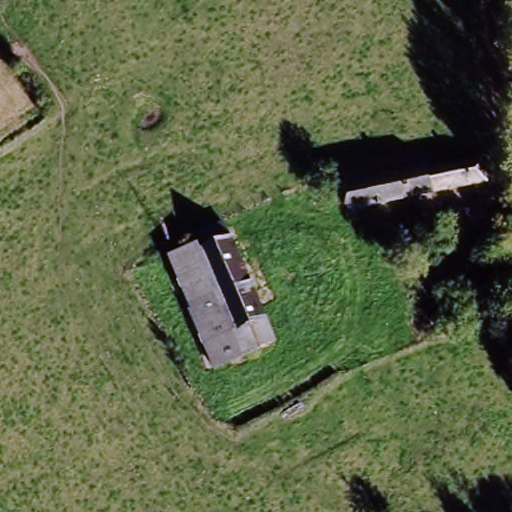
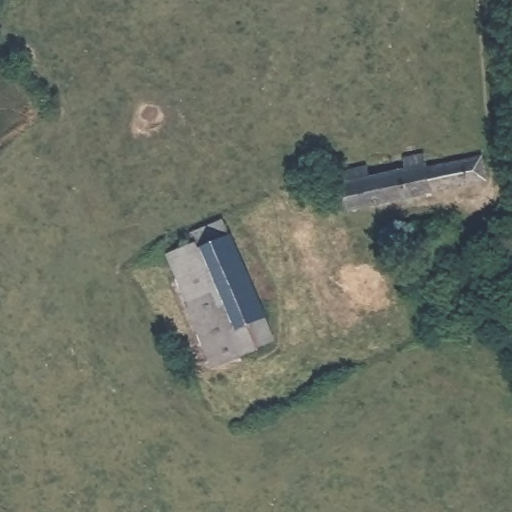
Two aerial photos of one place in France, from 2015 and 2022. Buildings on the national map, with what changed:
unchanged [(341,197),(343,157),(367,157),(368,169),(407,170),(408,156),(431,155),(431,169),(459,169),(481,169),(481,200),(458,200),(341,197)]
unchanged [(202,250),(235,347),(203,357),(183,301),(188,299),(170,249),(198,240),(194,232),(223,222),(231,240),(202,250)]
unchanged [(264,337),(235,347),(202,250),(231,240),(264,337)]

